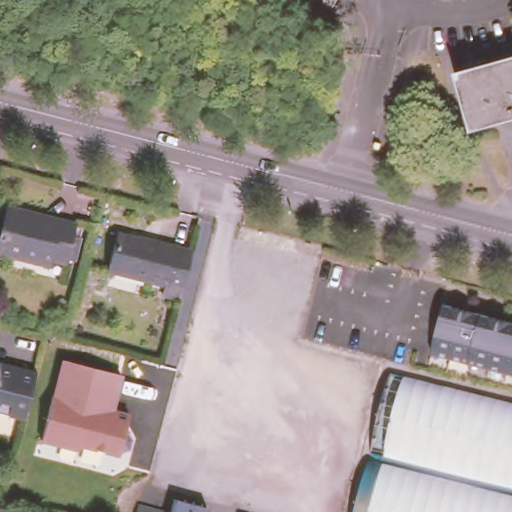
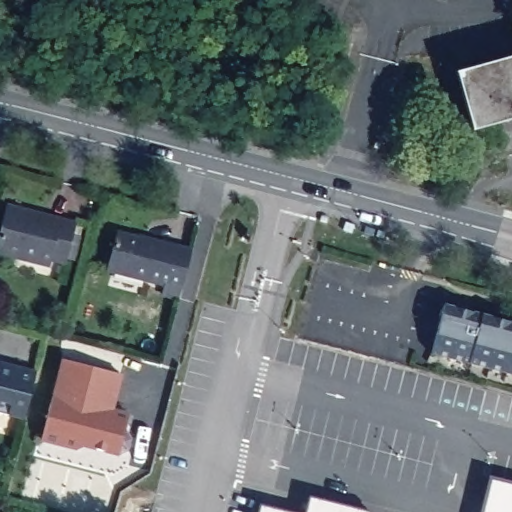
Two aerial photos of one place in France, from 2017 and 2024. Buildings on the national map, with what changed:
unchanged [(455,67),(512,52),(512,114),(471,125),(455,67)]
unchanged [(43,206),(42,209),(57,212),(58,210),(75,214),(65,254),(50,250),(49,256),(0,244),(0,225),(7,197),(43,206)]
unchanged [(176,294),(161,290),(164,278),(106,266),(115,229),(136,234),(136,235),(152,239),(153,236),(189,245),(176,294)]
unchanged [(441,302),(512,321),(512,372),(428,351),(441,302)]
unchanged [(23,415),(0,409),(0,357),(36,366),(23,415)]
unchanged [(81,445),(76,450),(41,440),(61,359),(123,374),(115,410),(128,413),(118,455),(81,445)]
demolished [(512,396),(512,512),(353,512),(390,364),(512,396)]
new [(512,486),(512,512),(483,512),(491,480),(512,486)]
demolished [(136,500),(170,508),(173,494),(206,502),(203,512),(133,512),(136,500)]
new [(311,501),(354,512),(308,512),(311,501)]
new [(261,508),(278,512),(260,512),(261,508)]
demolished [(236,510),(242,512),(236,512),(236,510)]

